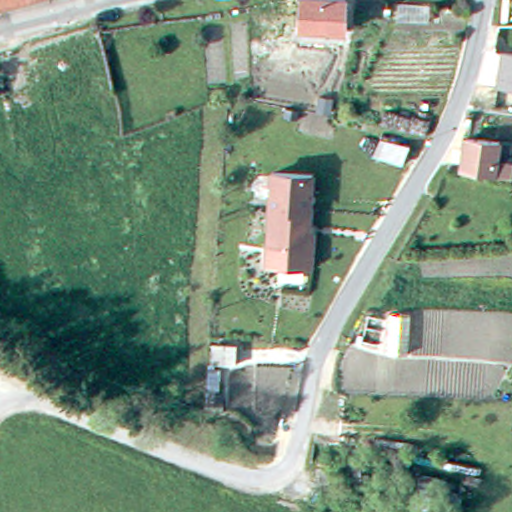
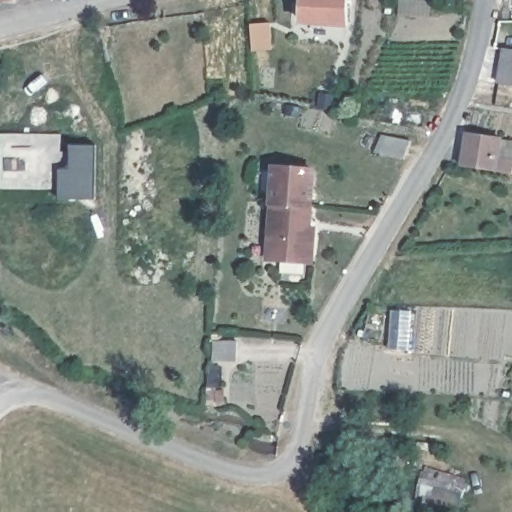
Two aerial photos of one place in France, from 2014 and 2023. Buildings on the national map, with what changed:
unchanged [(25,0),(0,6),(0,0),(25,0)]
unchanged [(310,26),(311,0),(354,0),(352,29),(310,26)]
unchanged [(502,61),(504,47),(512,48),(512,83),(499,81),(502,61)]
unchanged [(501,136),(498,155),(512,158),(512,171),(464,164),(469,131),(501,136)]
new [(62,134),(62,144),(97,143),(97,199),(60,199),(59,188),(0,188),(0,133),(62,134)]
unchanged [(405,158),(382,151),(389,135),(412,140),(405,158)]
unchanged [(310,227),(315,227),(313,261),(269,258),(275,166),(314,169),(310,227)]
unchanged [(239,361),(215,361),(215,342),(239,342),(239,361)]

